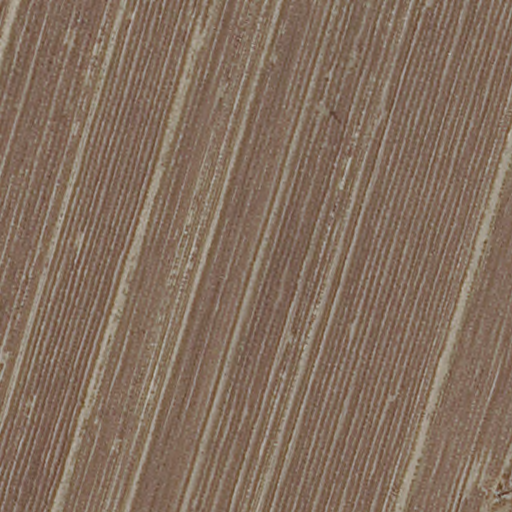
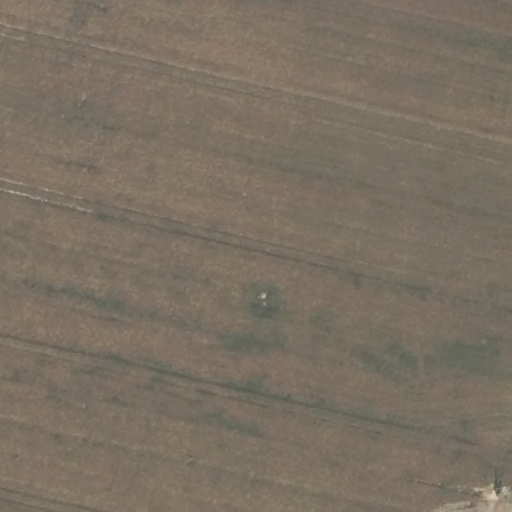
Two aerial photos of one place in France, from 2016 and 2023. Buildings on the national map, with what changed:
[]

